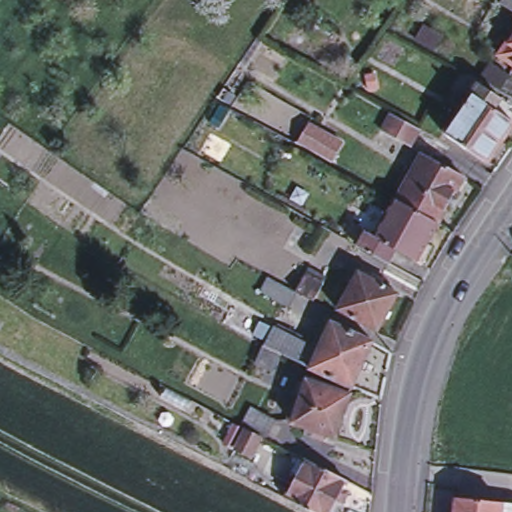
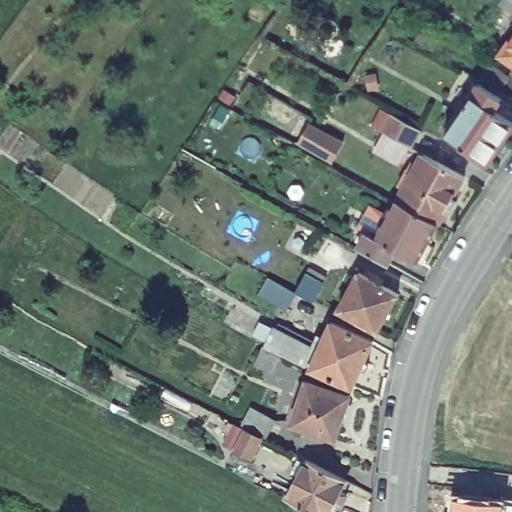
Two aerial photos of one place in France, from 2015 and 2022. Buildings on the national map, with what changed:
unchanged [(501,5),(504,0),(512,0),(512,11),(501,5)]
unchanged [(500,55),(512,38),(512,63),(500,55)]
unchanged [(485,85),(507,99),(500,110),(512,118),(512,134),(492,162),(450,133),(485,85)]
unchanged [(221,121),(211,136),(198,126),(217,98),(265,121),(257,141),(221,121)]
unchanged [(420,130),(410,147),(382,132),(392,114),(420,130)]
unchanged [(307,125),(342,145),(333,161),(298,142),(307,125)]
unchanged [(421,167),(427,155),(470,177),(444,223),(402,201),(410,188),(404,185),(415,164),(421,167)]
unchanged [(402,201),(444,223),(422,261),(401,250),(394,264),(365,248),(374,233),(380,236),(400,200),(402,201)]
unchanged [(327,278),(314,302),(295,292),(308,268),(327,278)]
unchanged [(398,294),(378,332),(338,310),(358,273),(398,294)]
unchanged [(295,293),(288,307),(260,293),(267,279),(295,293)]
unchanged [(257,359),(265,341),(274,324),(289,331),(291,327),(314,338),(312,343),(314,344),(318,334),(324,337),(332,318),(374,337),(365,357),(370,360),(367,366),(362,364),(353,383),(312,365),(280,349),(272,366),(257,359)]
unchanged [(351,390),(337,433),(324,429),(322,435),(305,430),(307,423),(293,419),(307,376),(351,390)]
unchanged [(251,403),(275,416),(273,421),(267,433),(242,421),(249,408),(251,403)]
unchanged [(262,433),(252,453),(235,446),(246,425),(262,433)]
unchanged [(331,512),(313,512),(287,499),(307,460),(347,480),(331,512)]
unchanged [(512,504),(512,512),(454,512),(456,498),(512,504)]

